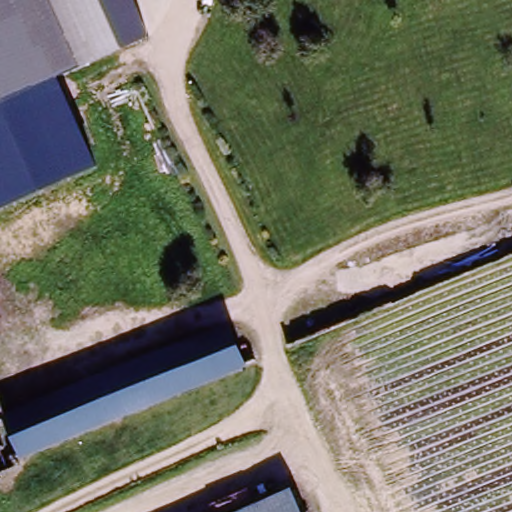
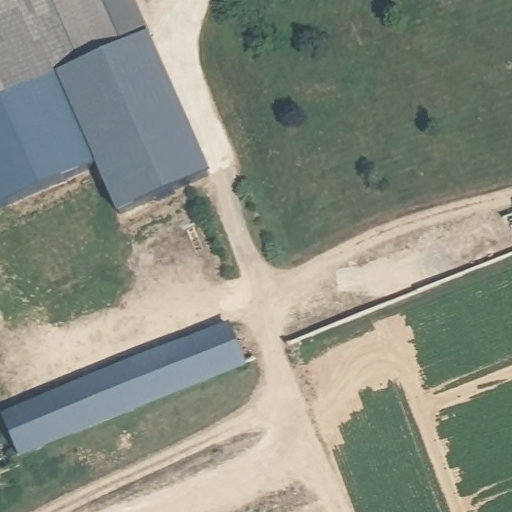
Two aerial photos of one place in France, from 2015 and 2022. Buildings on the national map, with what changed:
unchanged [(0,104),(0,0),(47,0),(80,70),(0,104)]
unchanged [(80,70),(48,0),(136,0),(152,36),(80,70)]
new [(212,174),(118,215),(96,165),(58,79),(80,70),(152,36),(212,174)]
unchanged [(0,104),(58,79),(96,165),(0,210),(0,104)]
unchanged [(22,455),(26,464),(4,471),(0,460),(0,447),(6,445),(17,441),(8,417),(234,332),(250,370),(125,415),(22,455)]

